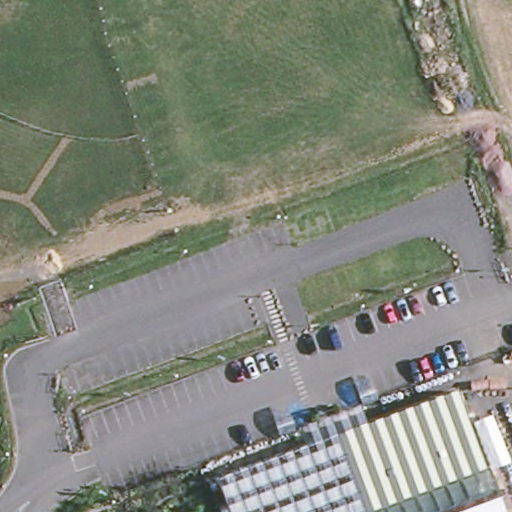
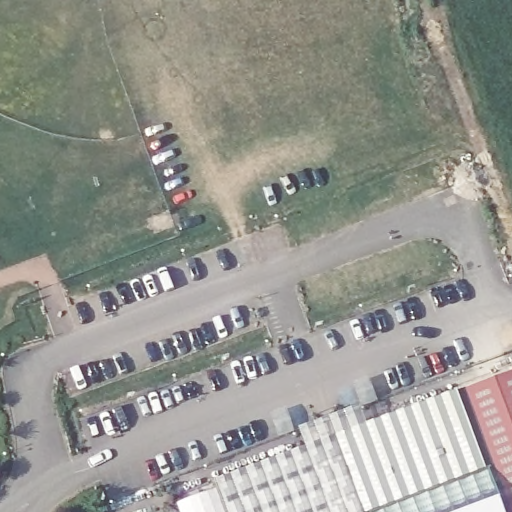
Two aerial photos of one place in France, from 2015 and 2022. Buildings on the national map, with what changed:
new [(512,371),(512,512),(509,512),(490,463),(463,388),(512,371)]
unchanged [(307,445),(301,428),(360,405),(367,422),(455,390),(479,468),(369,509),(370,512),(229,512),(217,480),(307,445)]
unchanged [(479,468),(487,465),(490,463),(505,458),(512,478),(512,512),(370,512),(369,509),(479,468)]

